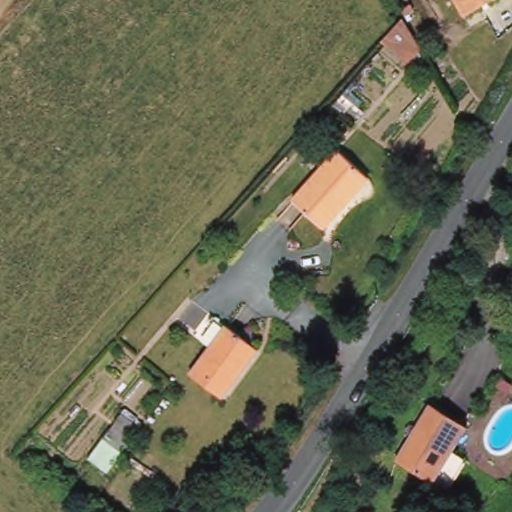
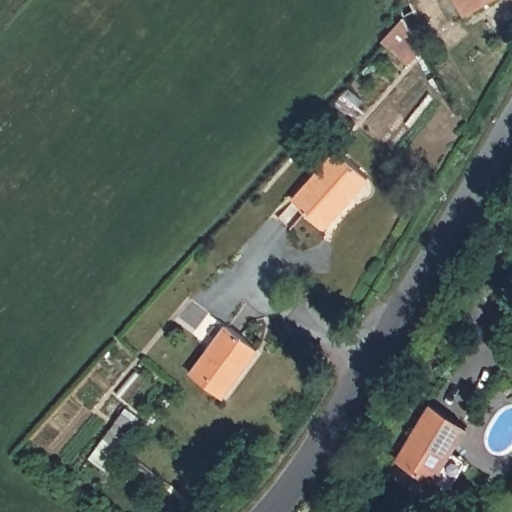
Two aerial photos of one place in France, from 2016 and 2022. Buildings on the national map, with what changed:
unchanged [(461,0),(497,0),(470,17),(461,0)]
unchanged [(331,231),(294,197),(340,148),(375,177),(331,231)]
unchanged [(231,398),(191,374),(230,323),(263,347),(231,398)]
unchanged [(437,483),(399,462),(432,401),(468,423),(456,449),(472,458),(449,493),(437,483)]

